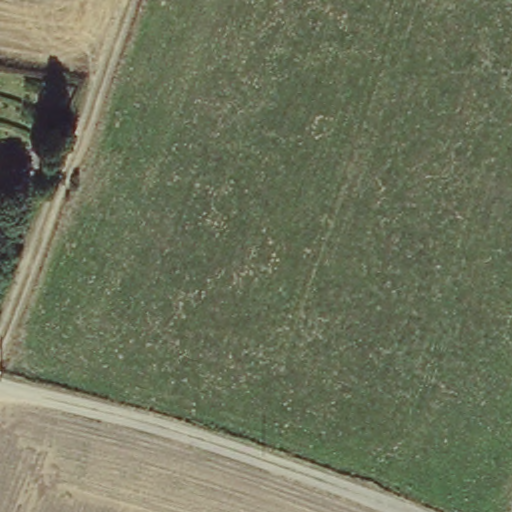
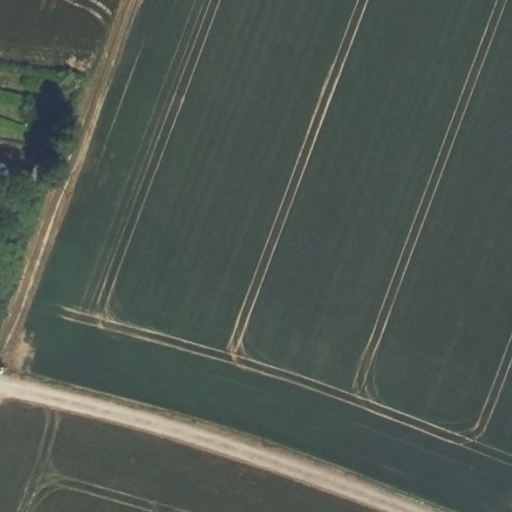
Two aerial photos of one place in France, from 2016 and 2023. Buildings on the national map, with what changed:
[]

